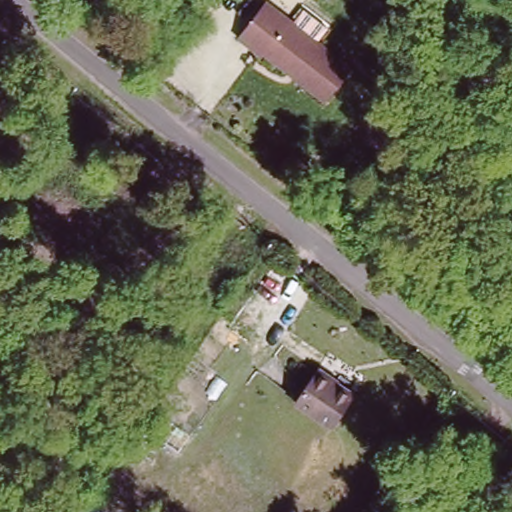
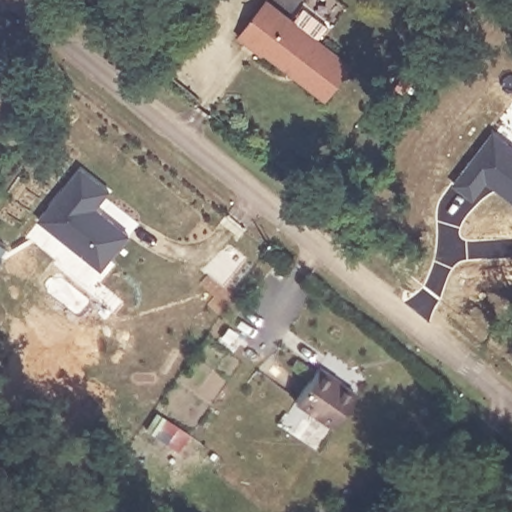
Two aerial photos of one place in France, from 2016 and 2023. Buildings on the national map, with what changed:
unchanged [(260,1),(346,69),(319,102),(261,55),(260,57),(235,39),(260,1)]
new [(474,200),(455,185),(493,133),(512,146),(512,200),(487,181),(474,200)]
new [(80,169),(108,192),(94,209),(101,215),(99,217),(105,221),(107,219),(127,236),(99,270),(39,221),(80,169)]
unchanged [(363,395),(344,431),(296,403),(322,362),(363,395)]

